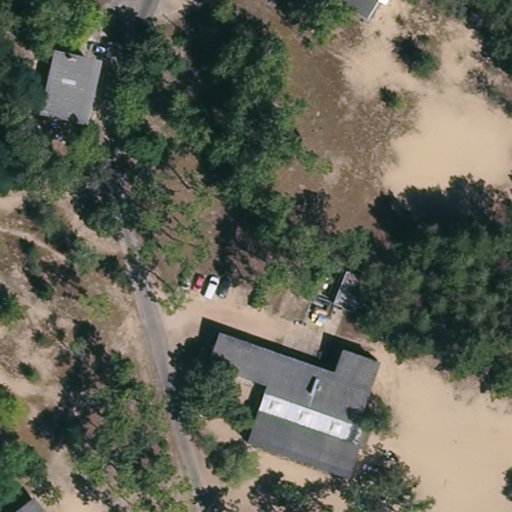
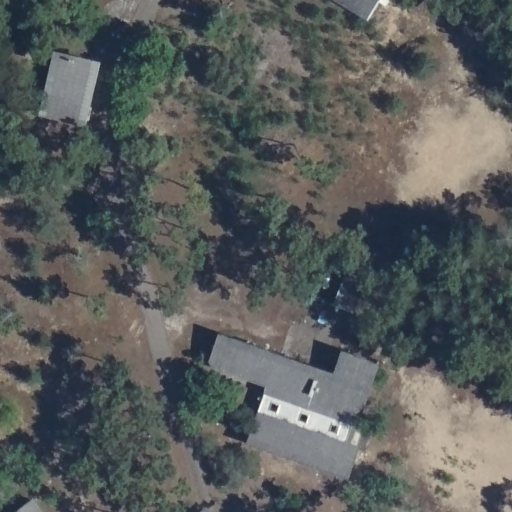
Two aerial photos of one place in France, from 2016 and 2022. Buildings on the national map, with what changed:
unchanged [(321,0),(378,0),(359,27),(321,0)]
unchanged [(88,66),(84,74),(94,80),(81,120),(40,104),(57,53),(88,66)]
unchanged [(343,305),(319,298),(330,264),(352,272),(343,305)]
unchanged [(364,432),(354,429),(347,449),(357,453),(348,483),(244,450),(262,392),(202,372),(206,352),(215,356),(220,340),(333,375),(338,356),(383,369),(364,432)]
unchanged [(29,506),(34,512),(21,512),(29,506)]

